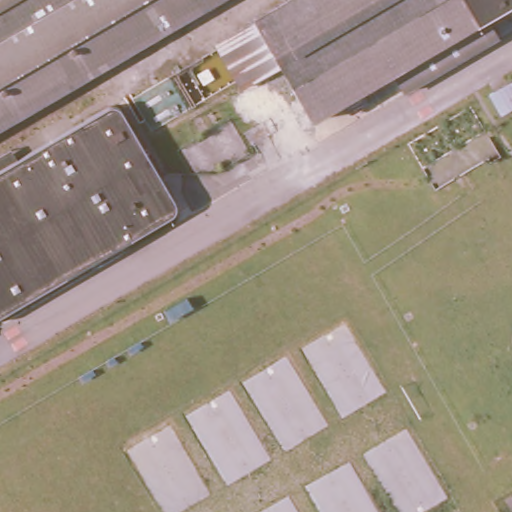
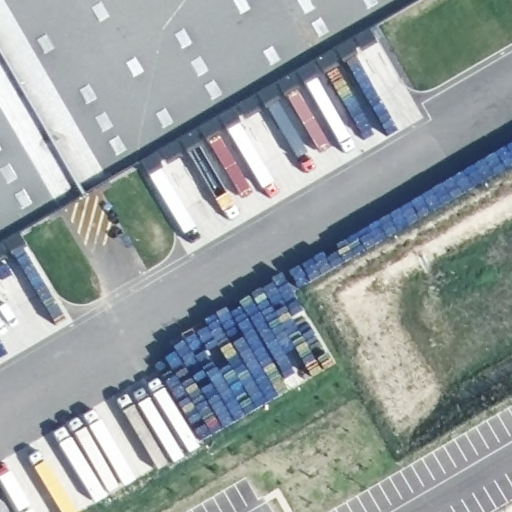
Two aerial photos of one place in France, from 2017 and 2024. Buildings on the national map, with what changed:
demolished [(0,0),(142,0),(0,82),(0,0)]
demolished [(0,118),(0,82),(142,0),(200,0),(201,1),(0,118)]
new [(0,0),(409,0),(0,240),(0,0)]
demolished [(200,0),(204,0),(201,1),(200,0)]
demolished [(438,0),(292,84),(254,18),(285,0),(438,0)]
demolished [(438,0),(467,0),(475,14),(307,111),(292,84),(438,0)]
demolished [(467,0),(499,0),(475,14),(467,0)]
demolished [(511,76),(512,77),(512,102),(500,108),(489,88),(511,76)]
demolished [(175,195),(177,200),(176,205),(173,210),(170,213),(0,309),(0,163),(15,155),(111,100),(121,102),(175,195)]
demolished [(470,109),(486,132),(425,169),(407,144),(470,109)]

